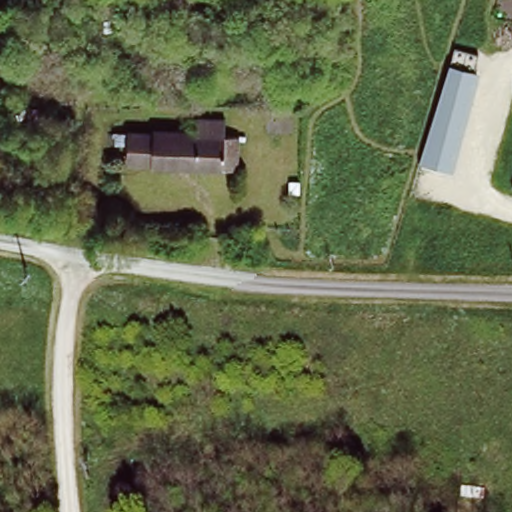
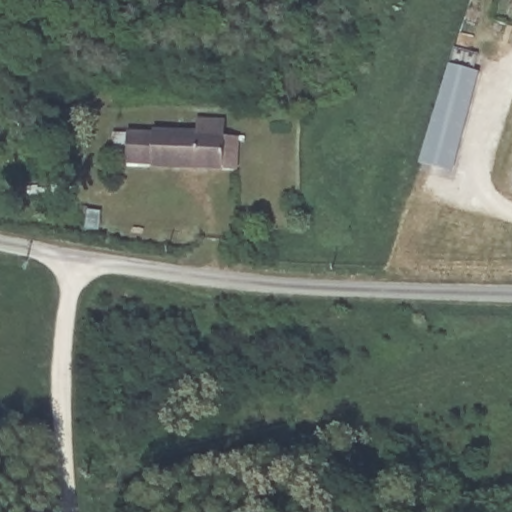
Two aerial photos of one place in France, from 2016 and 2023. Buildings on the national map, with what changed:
unchanged [(420,162),(453,45),(477,51),(473,68),(481,70),(453,170),(420,162)]
unchanged [(122,129),(146,129),(191,132),(192,116),(218,118),(217,133),(231,134),(230,166),(144,162),(120,160),(122,129)]

